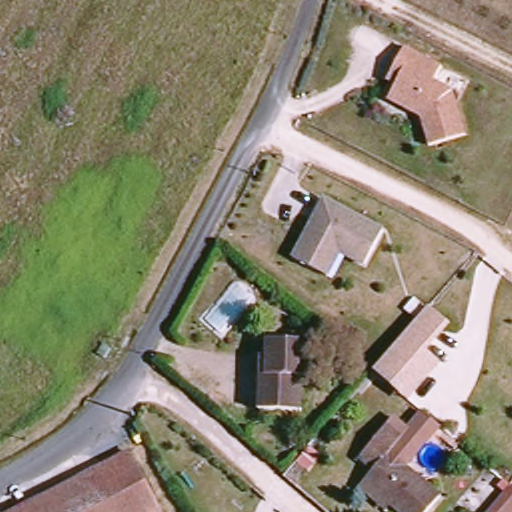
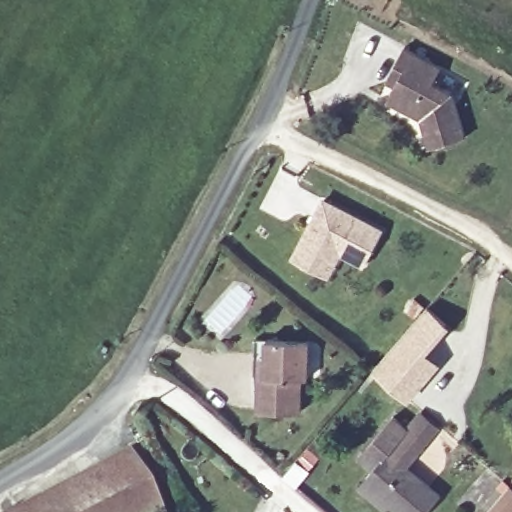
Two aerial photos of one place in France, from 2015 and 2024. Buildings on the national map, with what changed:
unchanged [(422,117),(391,100),(397,84),(388,79),(407,42),(445,60),(438,77),(459,86),(471,132),(431,146),(422,117)]
unchanged [(317,269),(295,257),(326,199),(385,231),(366,265),(342,252),(329,276),(317,269)]
unchanged [(372,367),(426,303),(450,323),(427,351),(441,363),(409,398),(372,367)]
unchanged [(308,380),(302,380),(302,415),(262,413),(263,397),(256,396),(257,341),(267,342),(309,343),(308,380)]
unchanged [(367,484),(376,473),(363,460),(396,423),(400,418),(406,425),(423,408),(444,429),(425,450),(409,469),(441,499),(430,512),(396,512),(391,507),(388,512),(382,512),(360,493),(367,484)]
unchanged [(31,512),(132,456),(164,512),(31,512)]
unchanged [(512,512),(502,512),(512,500),(512,512)]

